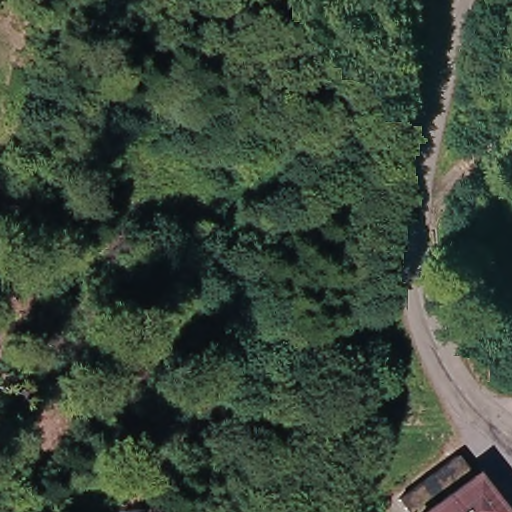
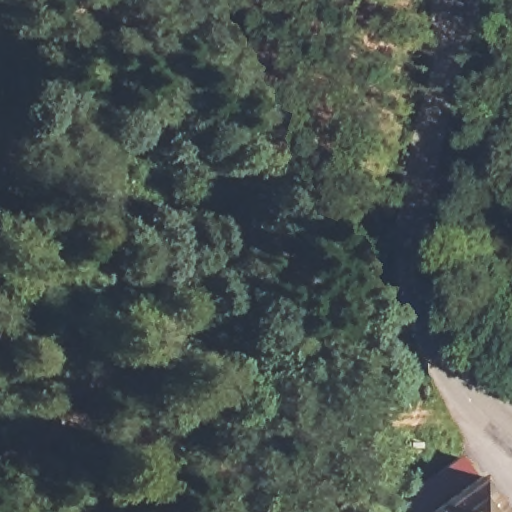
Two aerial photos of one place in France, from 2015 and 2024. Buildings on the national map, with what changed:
unchanged [(474,479),(501,512),(405,512),(401,507),(459,461),(472,481),(474,479)]

